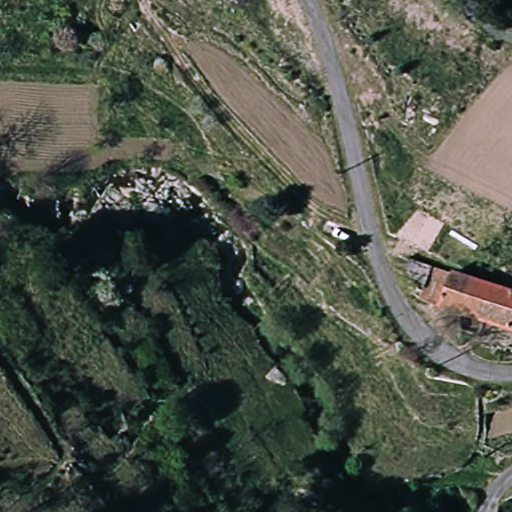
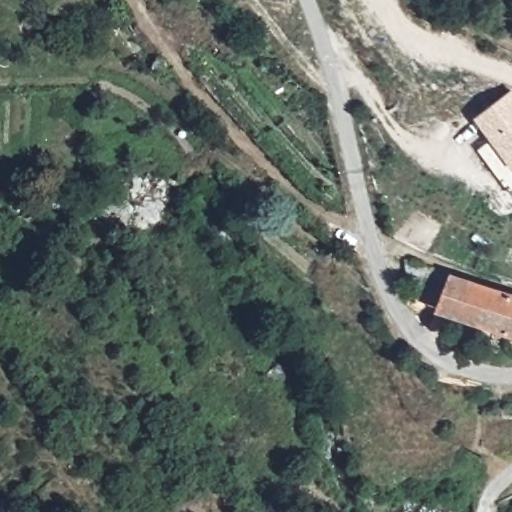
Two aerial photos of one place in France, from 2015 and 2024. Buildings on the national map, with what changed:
new [(478,150),(492,139),(475,116),(512,89),(512,191),(511,192),(478,150)]
unchanged [(475,316),(436,291),(421,257),(485,284),(475,316)]
unchanged [(485,284),(512,292),(512,323),(475,316),(485,284)]

